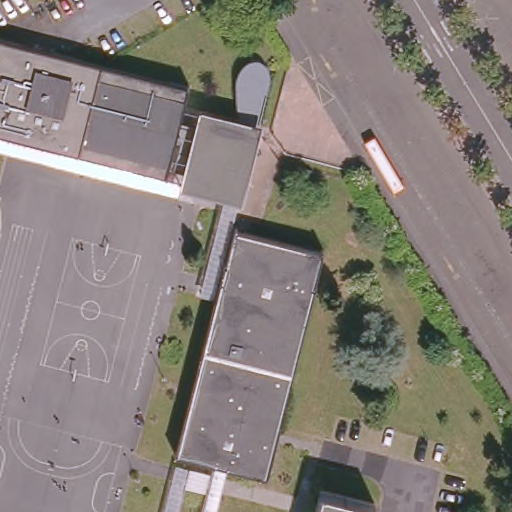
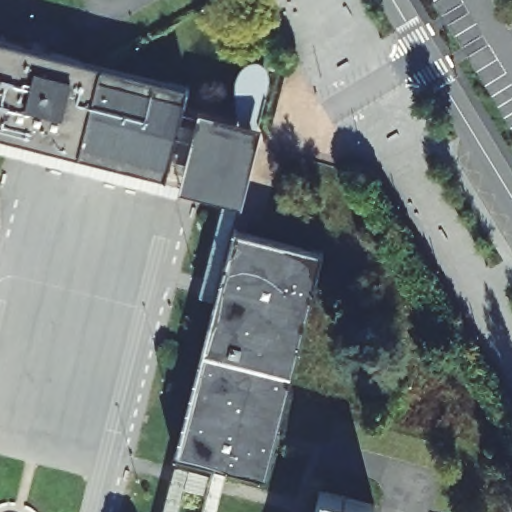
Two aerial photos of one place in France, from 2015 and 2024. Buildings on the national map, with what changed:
unchanged [(166,174),(0,131),(0,37),(188,85),(166,174)]
unchanged [(250,59),(260,58),(271,61),(275,66),(266,120),(241,114),(242,70),(250,59)]
unchanged [(245,200),(183,183),(204,104),(241,114),(266,120),(245,200)]
unchanged [(175,456),(235,228),(319,250),(262,478),(175,456)]
unchanged [(369,506),(368,512),(310,512),(315,490),(369,506)]

